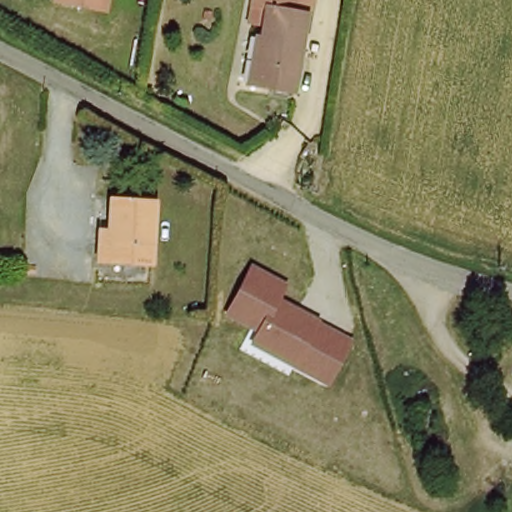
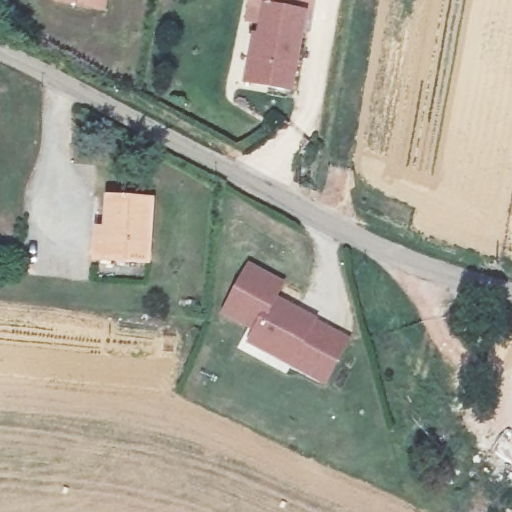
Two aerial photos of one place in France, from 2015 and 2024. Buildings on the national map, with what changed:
unchanged [(106,12),(52,2),(52,0),(109,0),(106,12)]
unchanged [(248,6),(250,0),(318,0),(316,18),(307,14),(261,4),(248,6)]
unchanged [(294,93),(243,81),(248,30),(259,30),(261,4),(307,14),(294,93)]
unchanged [(101,226),(109,226),(112,200),(155,203),(148,265),(99,260),(101,226)]
unchanged [(286,283),(280,297),(354,337),(329,385),(250,345),(256,330),(224,313),(250,263),(286,283)]

